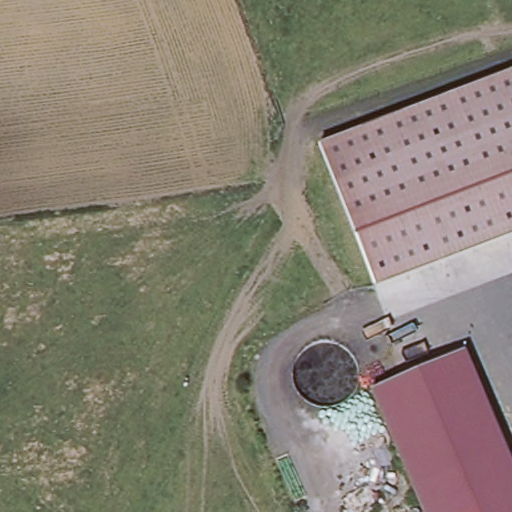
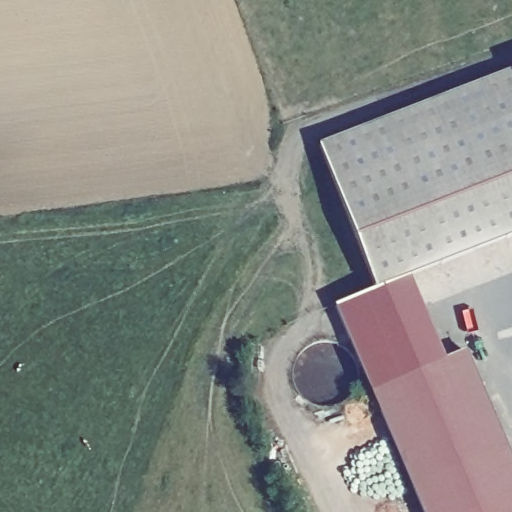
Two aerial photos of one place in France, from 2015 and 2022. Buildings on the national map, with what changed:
unchanged [(377,285),(375,280),(322,145),(488,80),(512,70),(512,232),(377,285)]
new [(445,360),(375,391),(371,393),(335,306),(378,288),(377,285),(409,273),(445,360)]
unchanged [(512,461),(512,512),(426,512),(375,391),(465,352),(512,461)]

